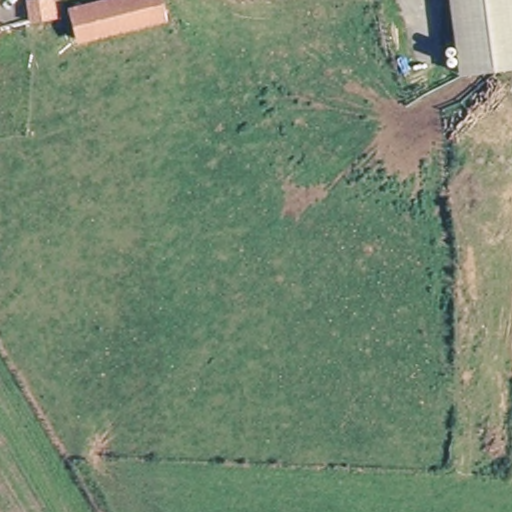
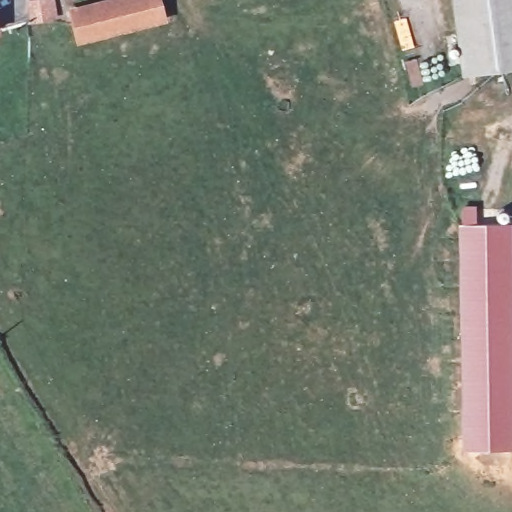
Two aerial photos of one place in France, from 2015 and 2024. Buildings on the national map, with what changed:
unchanged [(80,36),(73,8),(105,0),(164,0),(167,14),(80,36)]
unchanged [(512,66),(465,72),(454,0),(512,0),(512,66)]
unchanged [(66,32),(45,37),(42,16),(64,13),(66,32)]
new [(480,236),(512,236),(512,461),(470,461),(465,221),(480,221),(480,236)]

